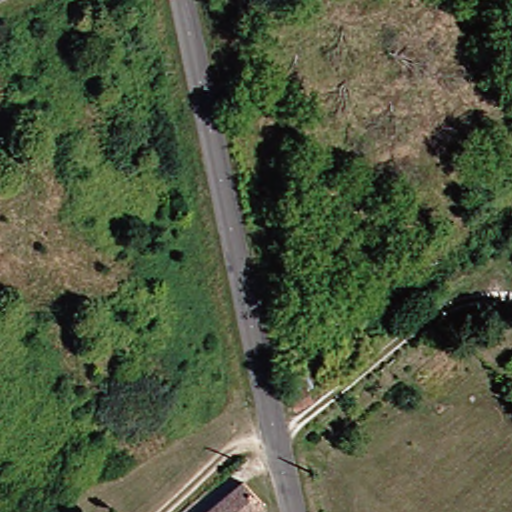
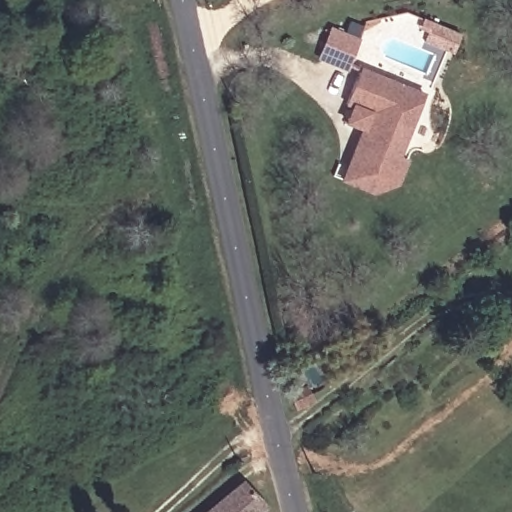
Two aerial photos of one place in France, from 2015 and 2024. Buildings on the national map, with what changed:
new [(350,31),(353,23),(366,28),(348,73),(317,60),(330,28),(350,31)]
new [(425,94),(400,157),(408,160),(398,186),(372,197),(340,182),(360,132),(344,125),(352,109),(345,106),(360,68),(425,94)]
unchanged [(299,419),(297,408),(310,399),(314,410),(299,419)]
unchanged [(214,512),(253,479),(275,512),(214,512)]

